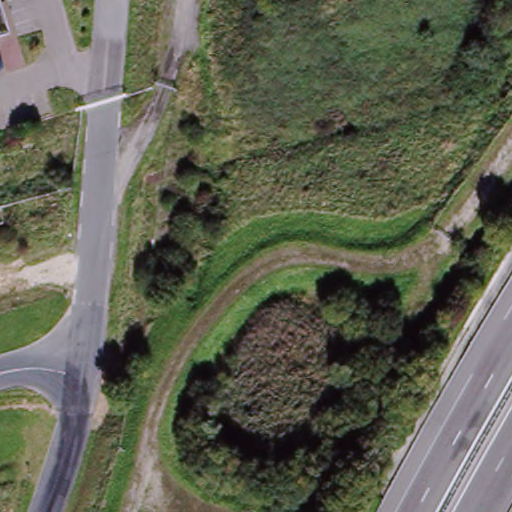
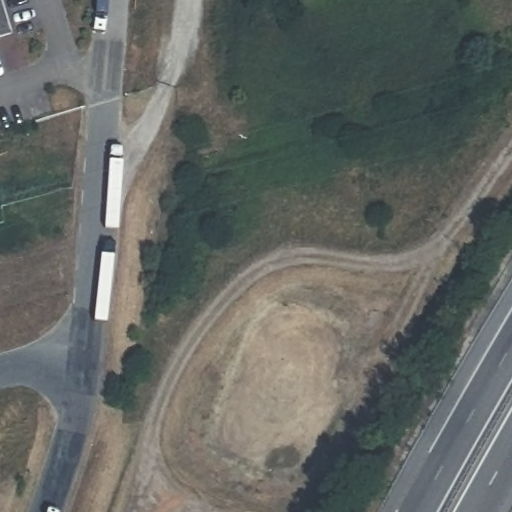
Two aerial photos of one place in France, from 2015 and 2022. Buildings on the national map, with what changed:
unchanged [(0,36),(0,3),(10,33),(0,36)]

